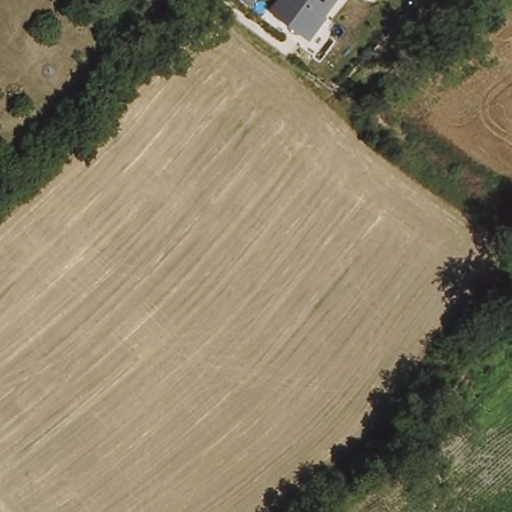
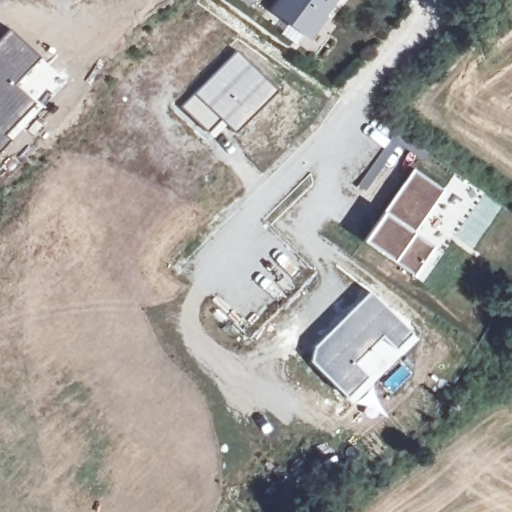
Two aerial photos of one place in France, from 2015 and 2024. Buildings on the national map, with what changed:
unchanged [(306,35),(274,11),(282,0),(335,0),(323,16),(308,36),(306,35)]
new [(9,28),(40,55),(15,83),(35,102),(6,133),(13,140),(0,152),(0,38),(9,28)]
new [(180,107),(194,93),(237,50),(279,90),(234,134),(227,126),(213,139),(180,107)]
new [(35,102),(15,83),(40,55),(68,80),(13,140),(6,133),(35,102)]
new [(394,262),(364,241),(384,212),(414,171),(444,190),(414,234),(434,247),(414,277),(394,262)]
new [(314,345),(370,291),(411,331),(393,349),(381,337),(355,363),(367,376),(344,398),(308,361),(314,345)]
new [(367,376),(355,363),(381,337),(393,349),(411,331),(419,339),(386,370),(353,405),(344,398),(367,376)]

